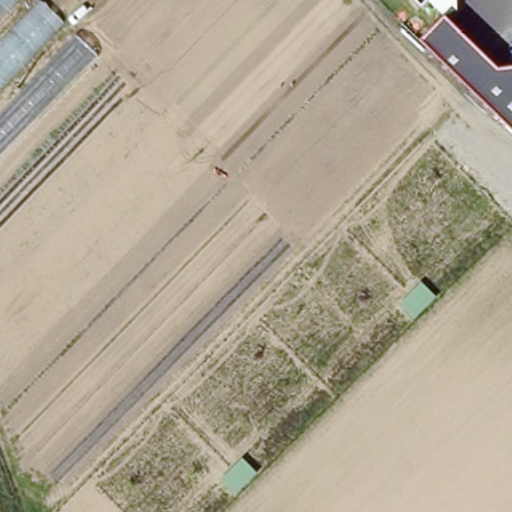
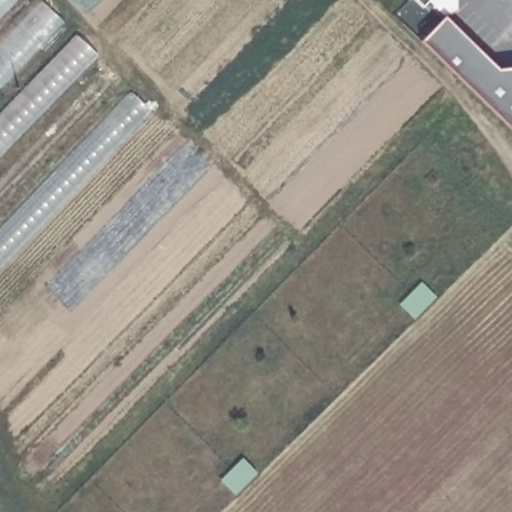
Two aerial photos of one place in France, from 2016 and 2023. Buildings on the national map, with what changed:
unchanged [(0,15),(0,0),(15,0),(0,15)]
unchanged [(41,0),(64,22),(0,87),(0,43),(41,0)]
unchanged [(427,6),(420,0),(432,0),(427,6)]
unchanged [(499,67),(512,66),(512,128),(422,40),(445,15),(499,67)]
unchanged [(76,35),(99,56),(0,157),(0,113),(76,35)]
new [(129,93),(152,115),(0,271),(0,226),(129,93)]
new [(424,283),(437,297),(413,320),(400,306),(424,283)]
new [(248,458),(261,471),(236,495),(223,482),(248,458)]

